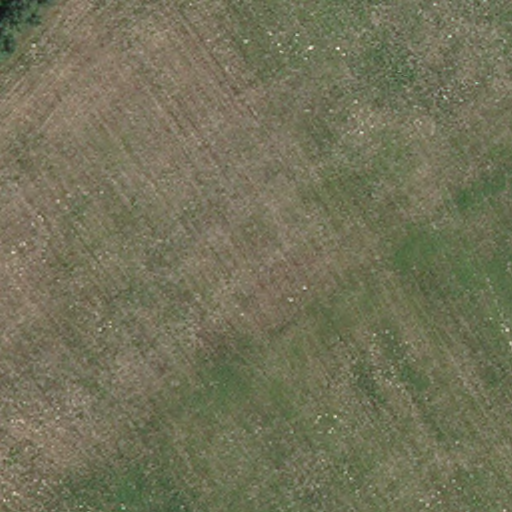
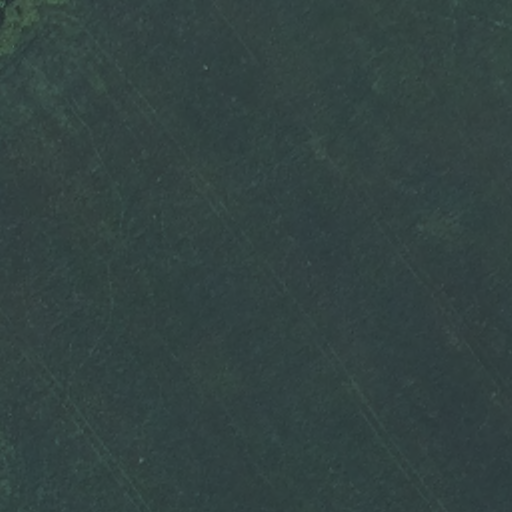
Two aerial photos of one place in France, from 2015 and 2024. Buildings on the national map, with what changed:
[]

